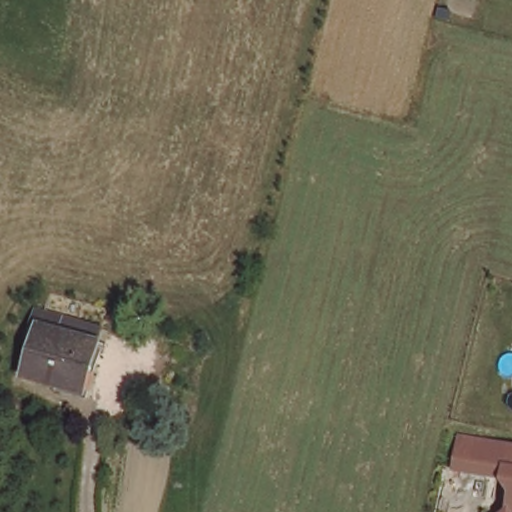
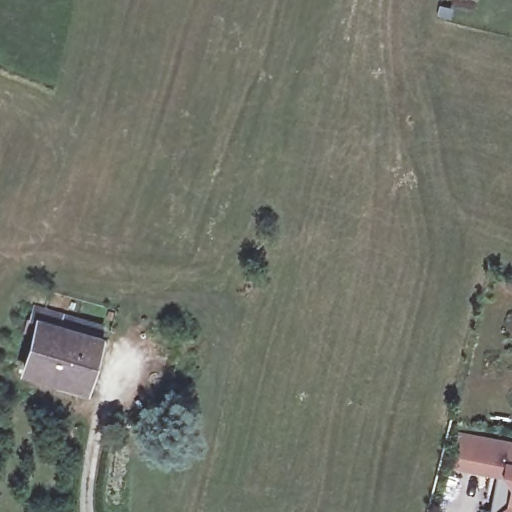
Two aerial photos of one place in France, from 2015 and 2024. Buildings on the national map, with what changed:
unchanged [(43,311),(101,327),(97,342),(83,391),(25,375),(40,325),(43,311)]
unchanged [(507,507),(510,490),(501,478),(452,468),(458,433),(512,443),(512,512),(499,512),(507,507)]

